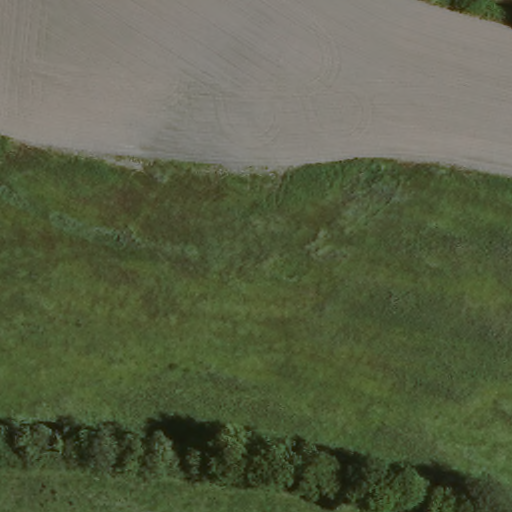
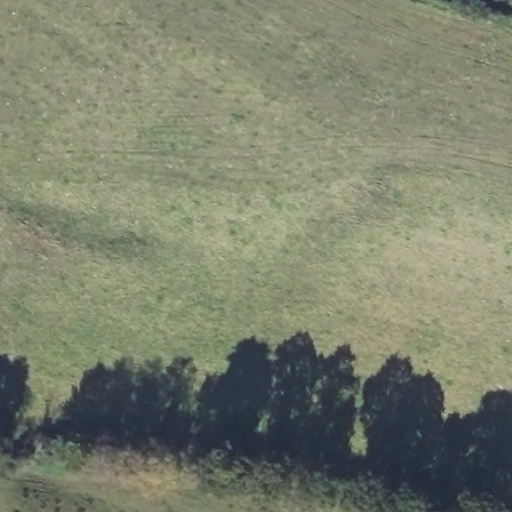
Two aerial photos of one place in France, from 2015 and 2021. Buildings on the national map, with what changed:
[]

